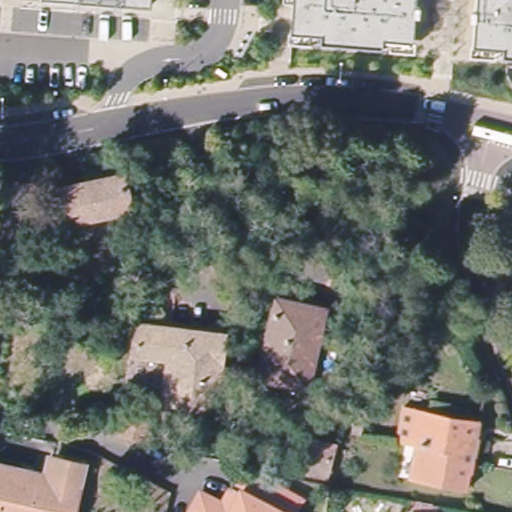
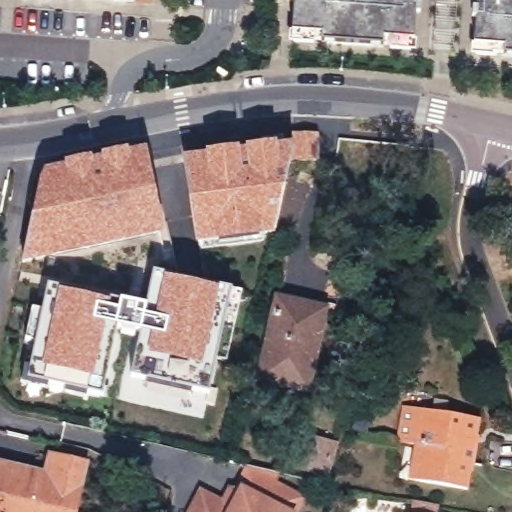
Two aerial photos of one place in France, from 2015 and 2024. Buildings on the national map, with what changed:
unchanged [(78,0),(151,0),(151,5),(124,3),(78,0)]
unchanged [(395,51),(395,50),(385,49),(323,44),(313,44),(313,45),(292,43),(292,34),(294,34),(297,3),(288,2),(288,0),(420,0),(417,43),(417,44),(417,53),(395,51)]
unchanged [(506,54),(496,53),(496,55),(475,53),(475,44),(477,44),(480,0),(512,0),(512,55),(506,54)]
new [(274,231),(198,239),(184,161),(296,146),(274,231)]
new [(166,235),(21,266),(42,169),(147,148),(166,235)]
demolished [(134,201),(74,213),(68,183),(128,171),(134,201)]
demolished [(41,211),(59,215),(54,237),(36,233),(41,211)]
demolished [(417,239),(398,235),(402,217),(421,221),(417,239)]
new [(119,301),(146,306),(155,272),(232,288),(209,390),(132,373),(142,331),(116,327),(102,391),(31,378),(47,287),(119,301)]
unchanged [(260,376),(277,301),(280,293),(323,302),(321,310),(305,385),(260,376)]
demolished [(176,309),(165,308),(166,297),(177,298),(176,309)]
demolished [(142,328),(226,336),(221,411),(171,406),(174,357),(140,354),(142,328)]
unchanged [(417,443),(402,440),(410,406),(481,422),(477,438),(472,475),(467,492),(417,481),(408,480),(417,443)]
unchanged [(320,474),(295,467),(302,438),(327,444),(320,474)]
unchanged [(52,474),(57,453),(86,459),(72,512),(0,512),(0,462),(12,465),(52,474)]
unchanged [(224,505),(234,486),(242,492),(247,466),(276,473),(273,483),(300,498),(292,512),(190,512),(201,492),(224,505)]
unchanged [(437,507),(435,512),(415,512),(417,503),(437,507)]

